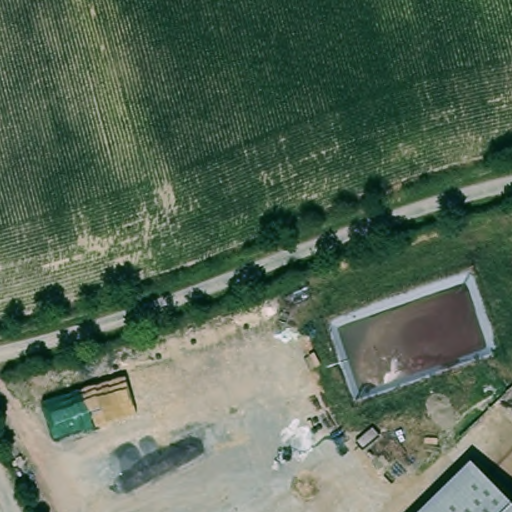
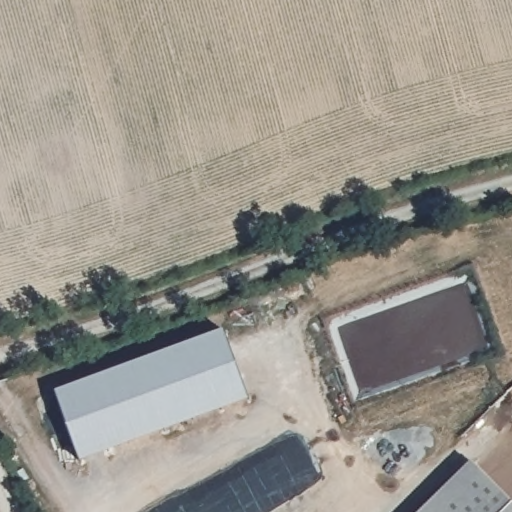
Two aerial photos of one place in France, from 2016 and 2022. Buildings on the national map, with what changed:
new [(249,402),(81,462),(56,392),(225,331),(249,402)]
unchanged [(512,501),(512,512),(422,512),(473,462),(512,501)]

